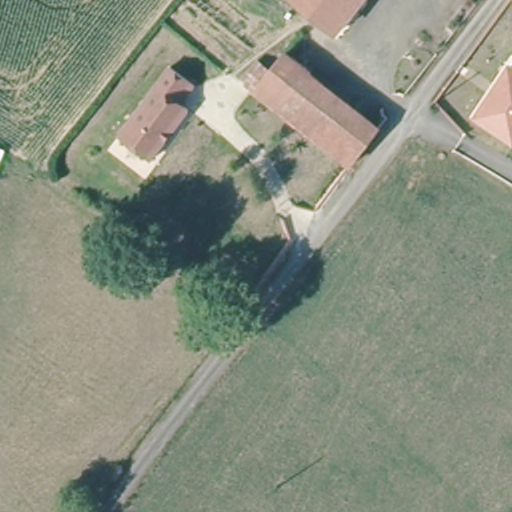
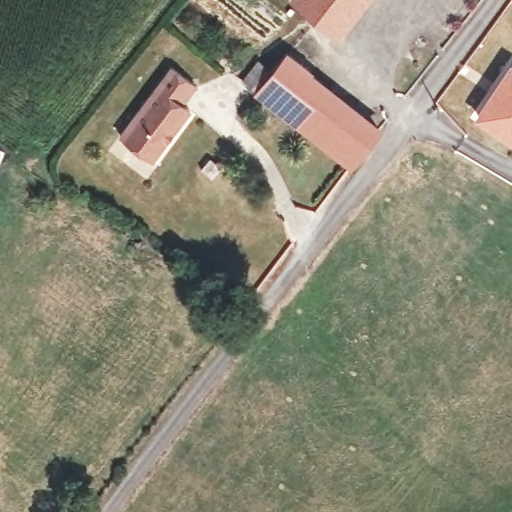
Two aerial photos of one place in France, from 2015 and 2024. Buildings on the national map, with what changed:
unchanged [(339,35),(296,0),(364,0),(339,35)]
unchanged [(355,162),(262,87),(288,51),(381,127),(355,162)]
unchanged [(119,133),(174,58),(200,74),(181,100),(189,103),(192,105),(150,157),(148,155),(119,133)]
unchanged [(481,109),(512,62),(512,129),(481,109)]
unchanged [(0,159),(0,140),(7,142),(0,159)]

